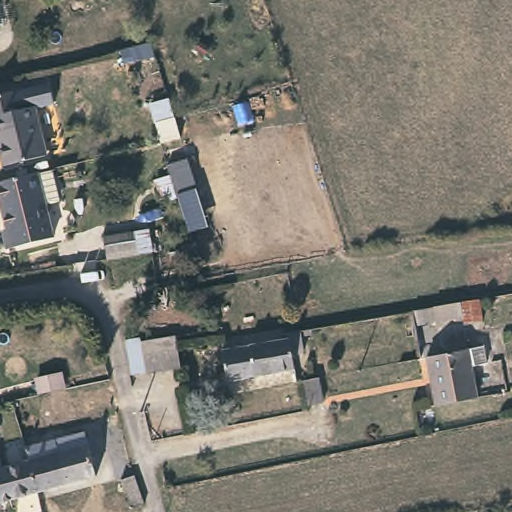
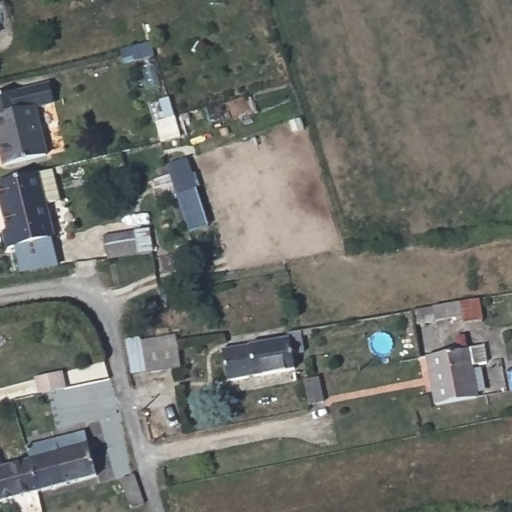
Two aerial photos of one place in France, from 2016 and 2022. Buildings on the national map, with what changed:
unchanged [(48,82),(53,103),(34,108),(46,155),(4,165),(0,149),(0,94),(48,82)]
unchanged [(169,96),(176,116),(182,137),(161,141),(155,120),(150,102),(169,96)]
unchanged [(186,185),(167,190),(161,171),(180,165),(186,185)]
unchanged [(55,200),(41,204),(49,236),(2,249),(0,239),(0,231),(3,230),(0,220),(0,180),(47,168),(55,200)]
unchanged [(106,237),(136,232),(145,231),(148,244),(138,245),(108,250),(106,237)]
unchanged [(481,318),(463,321),(462,317),(415,325),(412,311),(479,300),(481,318)]
unchanged [(295,351),(284,354),(286,368),(223,380),(217,351),(281,338),(280,335),(291,332),(295,351)]
unchanged [(178,366),(146,371),(145,370),(131,372),(126,336),(140,334),(141,343),(175,337),(178,366)]
unchanged [(486,364),(472,367),(476,397),(435,405),(426,356),(482,345),(486,364)]
unchanged [(64,370),(68,386),(39,391),(37,375),(64,370)]
unchanged [(325,401),(308,405),(303,380),(319,376),(325,401)]
unchanged [(2,466),(29,459),(26,447),(83,432),(96,475),(38,490),(10,498),(0,501),(0,467),(2,466)]
unchanged [(143,503),(132,507),(121,479),(133,475),(143,503)]

